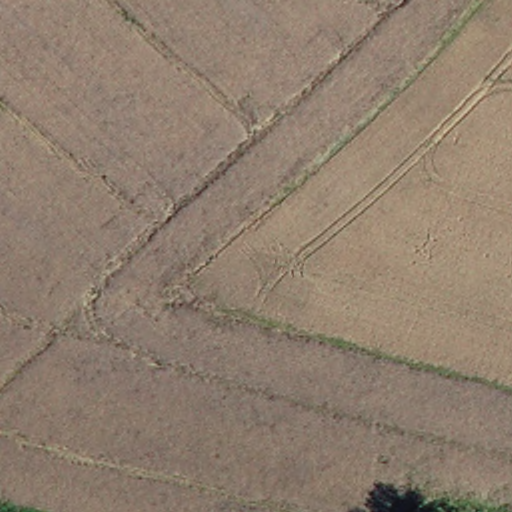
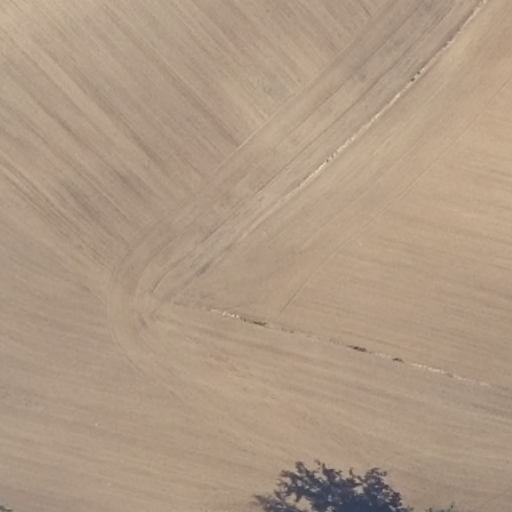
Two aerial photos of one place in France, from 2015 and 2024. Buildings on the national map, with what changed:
[]

